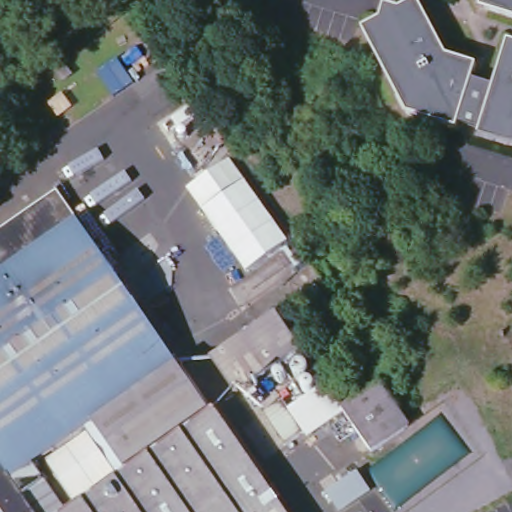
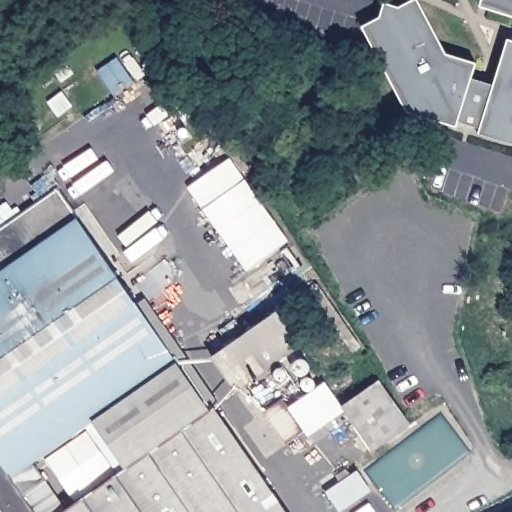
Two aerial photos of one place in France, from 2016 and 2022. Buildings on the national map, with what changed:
unchanged [(495,12),(489,0),(512,0),(512,17),(495,12)]
unchanged [(506,141),(498,142),(482,137),(485,131),(463,125),(461,130),(411,115),(367,29),(422,1),(452,57),(482,66),(477,80),(499,87),(512,45),(512,140),(506,141)]
unchanged [(248,180),(293,242),(250,272),(205,211),(248,180)]
unchanged [(67,512),(127,471),(94,422),(34,465),(46,482),(3,512),(1,512),(0,511),(0,231),(58,191),(211,412),(215,409),(285,512),(66,512),(67,512)]
unchanged [(339,330),(327,337),(304,303),(322,291),(366,353),(359,358),(339,330)]
unchanged [(213,358),(277,314),(300,347),(237,392),(213,358)]
unchanged [(346,415),(342,409),(379,383),(409,427),(372,452),(346,415)]
unchanged [(290,410),(325,385),(342,409),(346,415),(310,439),(305,432),(287,445),(265,412),(283,400),(290,410)]
unchanged [(329,494),(358,474),(369,491),(340,511),(329,494)]
unchanged [(46,482),(67,512),(66,512),(3,512),(46,482)]

